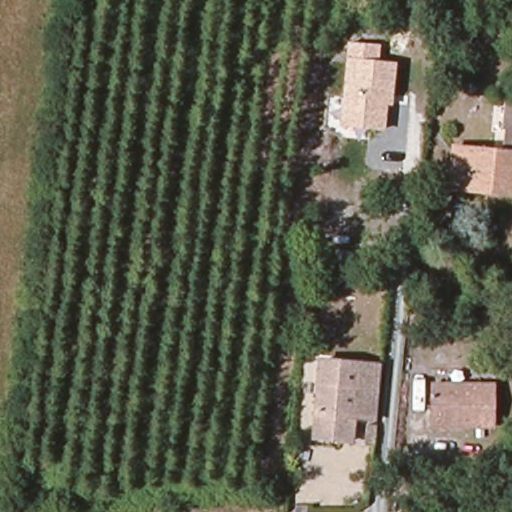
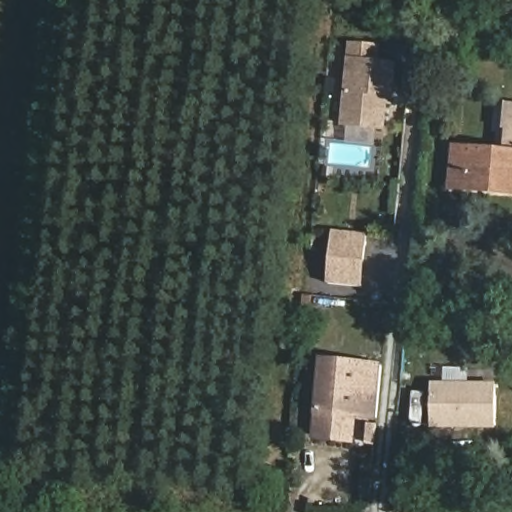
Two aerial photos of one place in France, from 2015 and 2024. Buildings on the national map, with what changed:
unchanged [(471,17),(470,44),(451,42),(452,16),(471,17)]
unchanged [(340,125),(347,57),(349,41),(381,44),(382,61),(399,61),(394,105),(389,104),(385,131),(340,125)]
unchanged [(506,129),(503,129),(506,103),(512,103),(512,149),(504,147),(506,129)]
unchanged [(446,192),(453,141),(468,143),(492,146),(512,149),(512,199),(487,196),(446,192)]
new [(336,232),(368,237),(361,287),(330,284),(336,232)]
unchanged [(342,440),(310,435),(320,356),(362,362),(376,364),(369,418),(354,416),(351,441),(342,440)]
unchanged [(493,386),(493,431),(428,430),(431,384),(493,386)]

